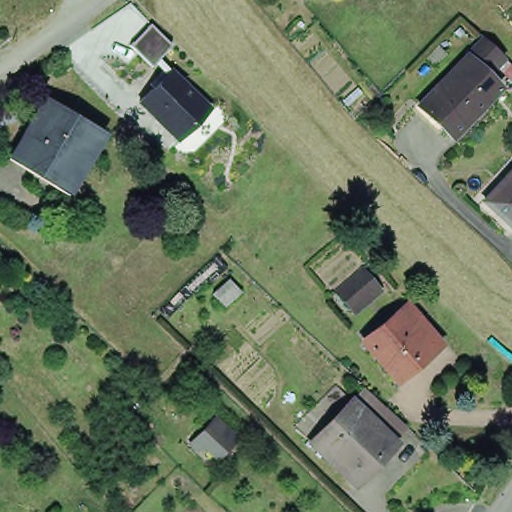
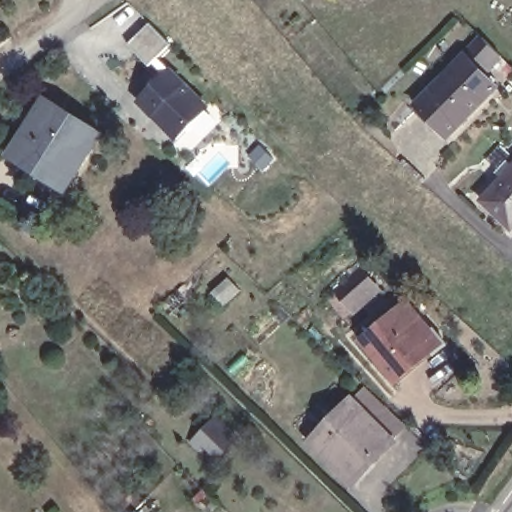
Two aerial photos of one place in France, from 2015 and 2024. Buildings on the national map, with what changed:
unchanged [(129,45),(149,25),(171,46),(171,47),(151,66),(150,68),(128,46),(129,45)]
unchanged [(449,135),(416,102),(464,53),(482,35),(503,56),(484,73),(497,85),(449,135)]
unchanged [(204,105),(198,111),(191,119),(191,127),(177,141),(138,102),(163,77),(169,71),(204,105)]
unchanged [(65,181),(16,151),(50,95),(106,130),(95,150),(87,145),(65,181)]
unchanged [(512,165),(512,225),(483,196),(512,165)]
unchanged [(353,315),(343,303),(366,283),(376,293),(353,315)]
unchanged [(401,377),(369,339),(411,302),(444,342),(401,377)]
unchanged [(315,435),(356,394),(373,410),(333,451),(315,435)]
unchanged [(373,410),(414,448),(380,483),(371,473),(364,480),(333,451),(373,410)]
unchanged [(218,460),(211,453),(204,445),(198,451),(191,444),(214,420),(228,435),(236,442),(218,460)]

